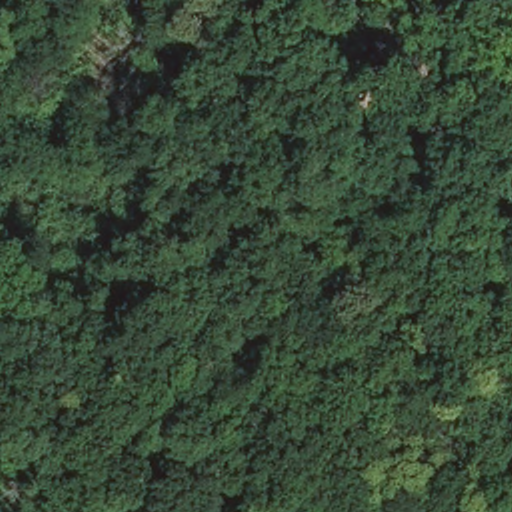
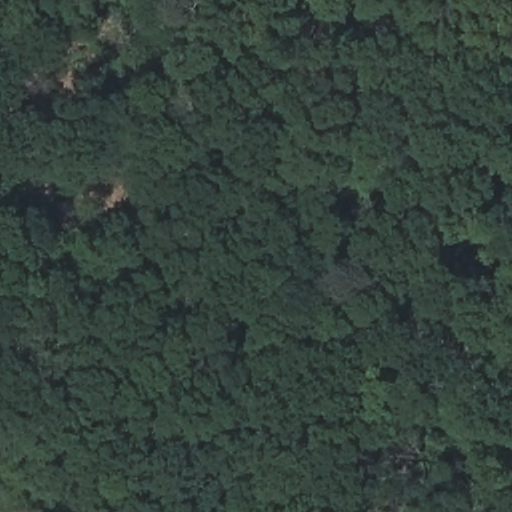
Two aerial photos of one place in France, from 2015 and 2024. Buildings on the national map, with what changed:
[]

